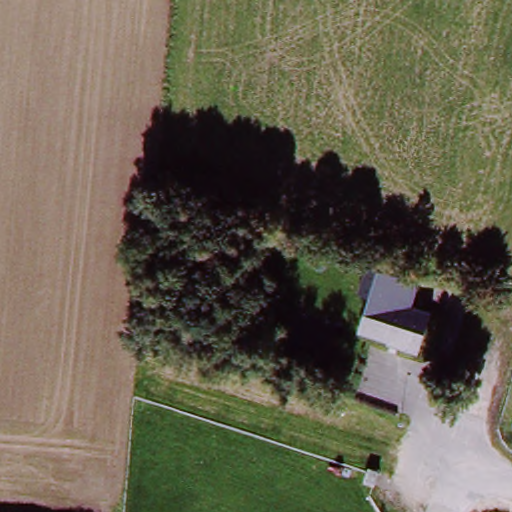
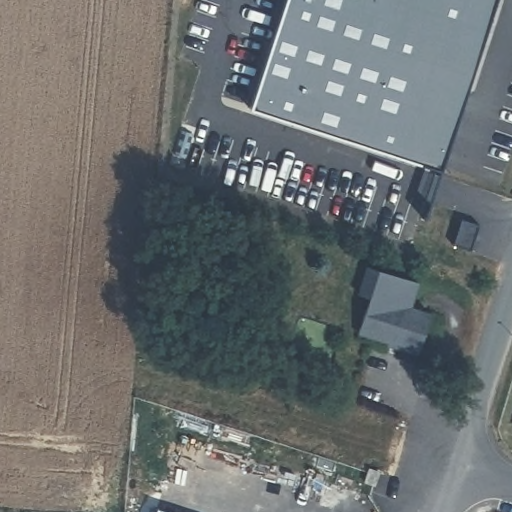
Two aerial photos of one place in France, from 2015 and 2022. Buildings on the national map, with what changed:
new [(250,109),(285,0),(495,0),(440,167),(250,109)]
unchanged [(365,329),(380,293),(367,290),(379,263),(430,282),(422,307),(440,314),(427,353),(409,348),(410,345),(397,341),(365,329)]
unchanged [(341,337),(327,383),(279,366),(295,322),(341,337)]
unchanged [(376,487),(372,500),(362,497),(365,483),(376,487)]

